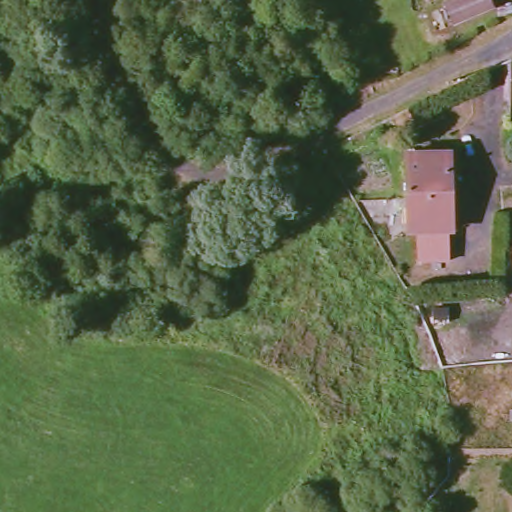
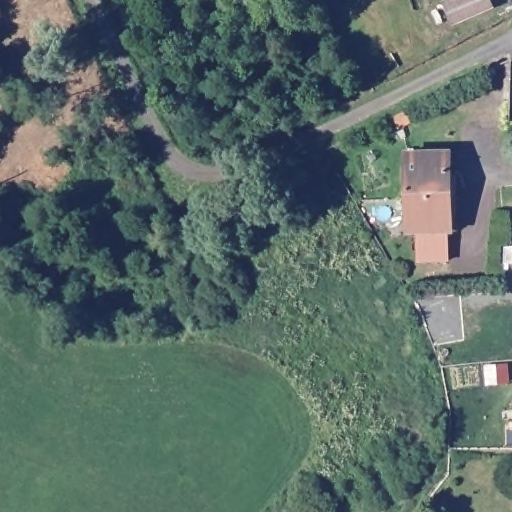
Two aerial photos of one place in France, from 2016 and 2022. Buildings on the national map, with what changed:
unchanged [(499,0),(501,3),(462,22),(453,1),(455,0),(499,0)]
unchanged [(418,227),(415,184),(413,152),(452,148),(457,225),(426,227),(418,227)]

